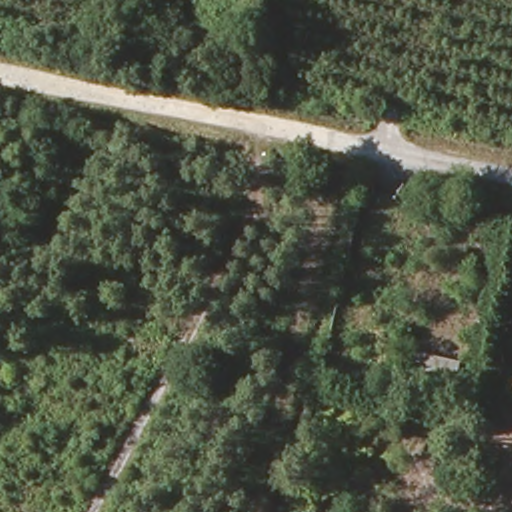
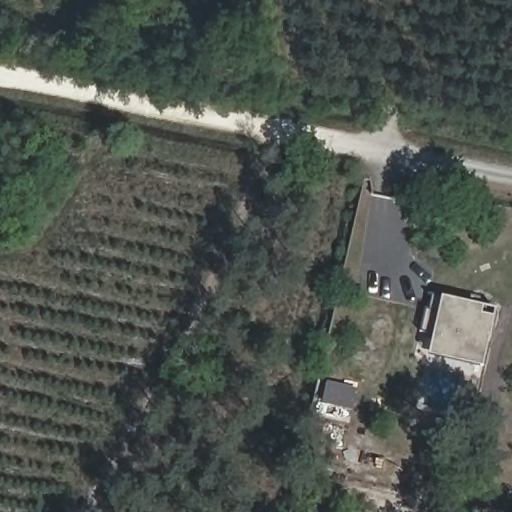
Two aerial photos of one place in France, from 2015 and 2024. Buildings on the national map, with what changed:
new [(421,333),(426,309),(430,310),(433,296),(442,297),(496,309),(484,368),(430,356),(434,334),(421,333)]
demolished [(466,376),(461,398),(420,389),(425,366),(466,376)]

